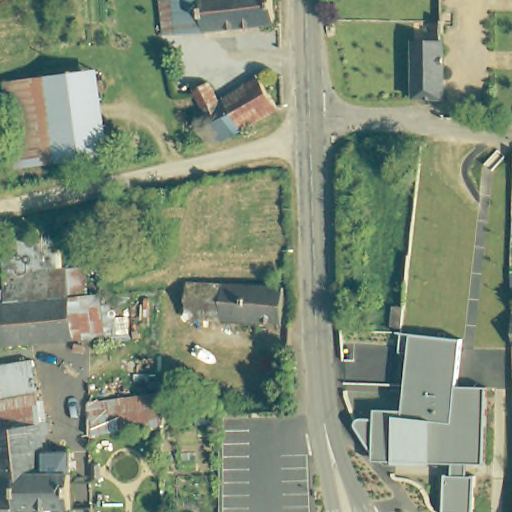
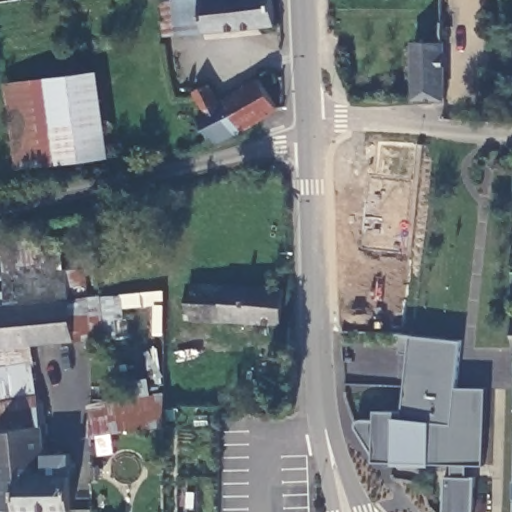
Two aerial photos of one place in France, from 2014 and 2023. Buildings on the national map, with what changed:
unchanged [(169,13),(168,0),(205,0),(207,31),(208,36),(172,40),(171,36),(159,36),(157,14),(169,13)]
unchanged [(244,29),(207,31),(205,0),(241,0),(244,25),(244,29)]
unchanged [(244,29),(244,25),(241,0),(277,0),(280,26),(244,29)]
unchanged [(440,102),(411,100),(410,41),(442,41),(443,102),(440,102)]
unchanged [(108,151),(16,163),(6,81),(98,69),(108,151)]
unchanged [(230,100),(266,81),(285,111),(249,133),(230,100)]
unchanged [(202,117),(210,114),(199,94),(213,86),(225,104),(230,100),(249,133),(221,147),(202,117)]
unchanged [(190,322),(192,287),(214,287),(253,290),(250,327),(190,322)]
unchanged [(285,293),(281,329),(250,327),(253,290),(285,293)]
unchanged [(60,303),(80,301),(86,300),(94,299),(99,339),(90,340),(84,341),(64,343),(24,348),(20,308),(60,303)]
unchanged [(24,348),(0,350),(0,310),(20,308),(24,348)]
unchanged [(445,477),(450,478),(451,464),(430,464),(393,464),(373,462),(373,454),(356,429),(355,424),(358,421),(362,420),(375,421),(375,411),(402,412),(408,355),(400,355),(402,334),(411,335),(460,340),(455,388),(485,389),(481,465),(468,465),(467,478),(472,478),(471,512),(444,512),(445,477)]
unchanged [(37,398),(45,396),(48,425),(0,434),(0,365),(30,361),(37,398)]
unchanged [(170,412),(169,412),(150,414),(144,415),(121,418),(92,422),(90,408),(171,396),(170,412)]
unchanged [(92,440),(92,422),(121,418),(144,415),(150,414),(169,412),(169,429),(92,440)]
unchanged [(77,474),(78,509),(25,510),(24,508),(1,509),(0,494),(0,434),(48,425),(50,474),(77,474)]
unchanged [(508,425),(512,425),(512,509),(510,509),(508,425)]

